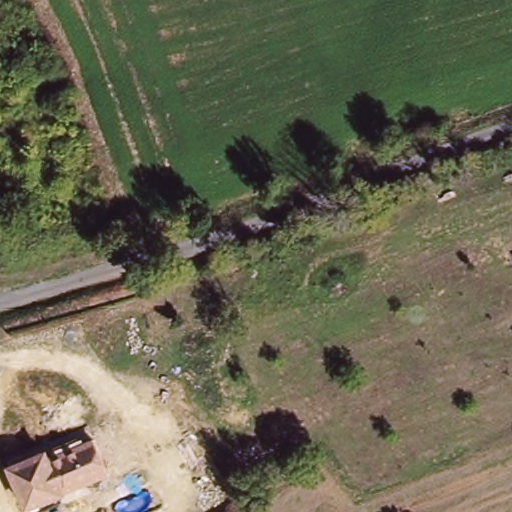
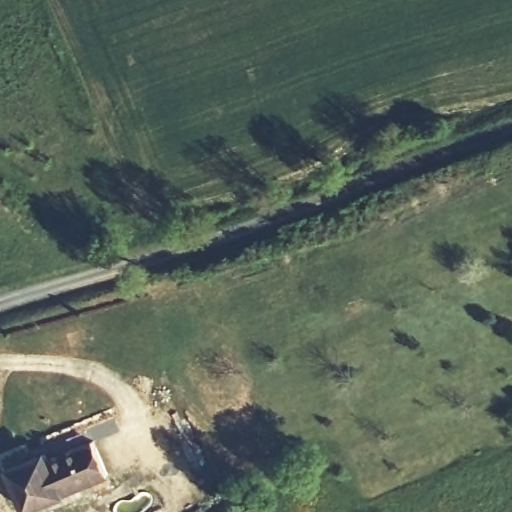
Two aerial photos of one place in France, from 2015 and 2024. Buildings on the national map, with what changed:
unchanged [(47,452),(50,458),(95,439),(109,478),(25,512),(7,469),(47,452)]

